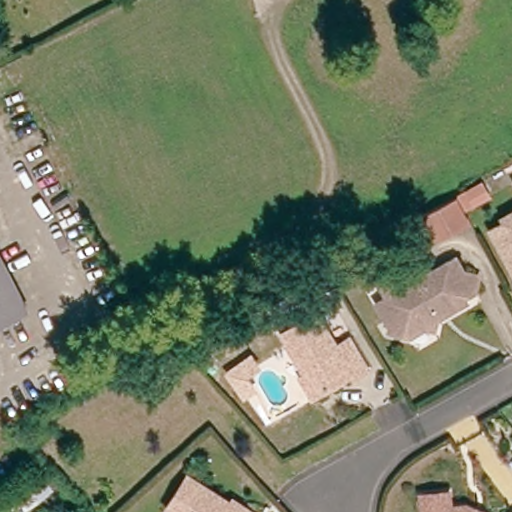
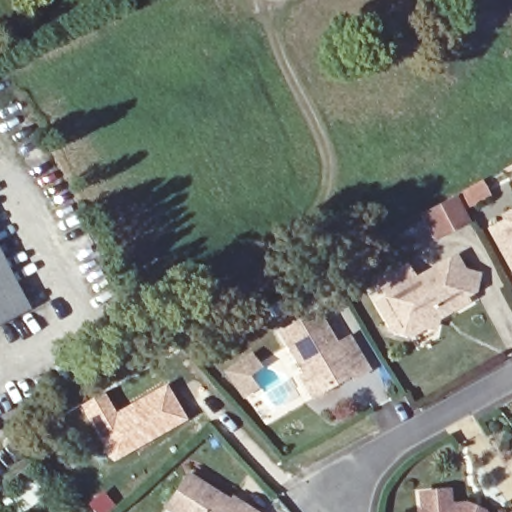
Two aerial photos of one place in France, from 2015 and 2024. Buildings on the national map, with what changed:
unchanged [(488,198),(466,210),(458,197),(480,185),(488,198)]
unchanged [(467,222),(433,240),(420,217),(454,199),(455,199),(467,222)]
unchanged [(512,220),(512,270),(491,232),(512,220)]
unchanged [(343,277),(336,266),(360,252),(366,263),(343,277)]
unchanged [(26,308),(0,322),(0,256),(26,308)]
unchanged [(388,298),(380,284),(407,268),(415,282),(455,259),(463,273),(478,276),(476,291),(465,297),(467,302),(455,309),(438,318),(437,328),(427,326),(412,335),(391,328),(378,305),(388,298)]
unchanged [(336,348),(350,341),(367,372),(352,381),(350,376),(315,396),(281,335),(317,315),(336,348)]
unchanged [(234,353),(220,360),(214,350),(228,342),(234,353)]
new [(249,348),(262,367),(250,376),(259,387),(242,400),(220,371),(249,348)]
new [(103,391),(115,410),(165,382),(187,418),(111,463),(77,405),(103,391)]
unchanged [(186,470),(229,497),(231,493),(260,512),(181,512),(165,501),(186,470)]

